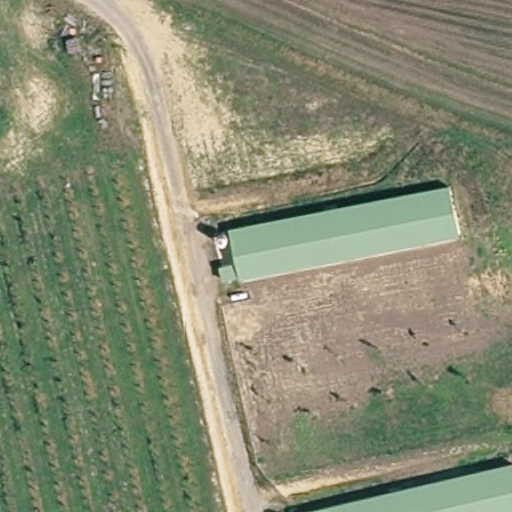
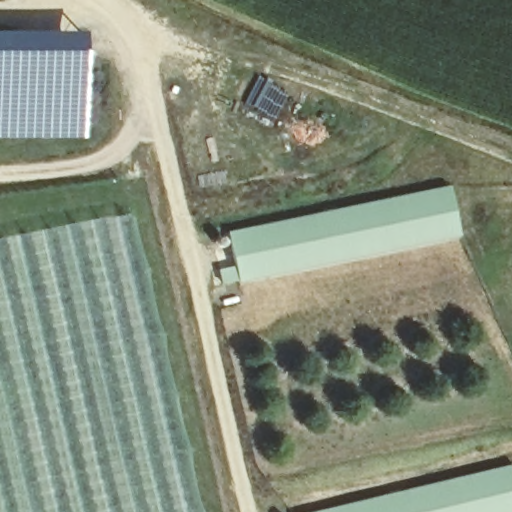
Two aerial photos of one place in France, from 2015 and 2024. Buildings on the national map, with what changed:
new [(5,42),(64,68),(25,134),(0,134),(0,42),(5,42)]
new [(90,42),(90,133),(25,134),(64,68),(5,42),(90,42)]
unchanged [(447,185),(460,235),(222,286),(218,270),(235,266),(228,231),(447,185)]
unchanged [(512,512),(313,512),(512,465),(512,512)]

